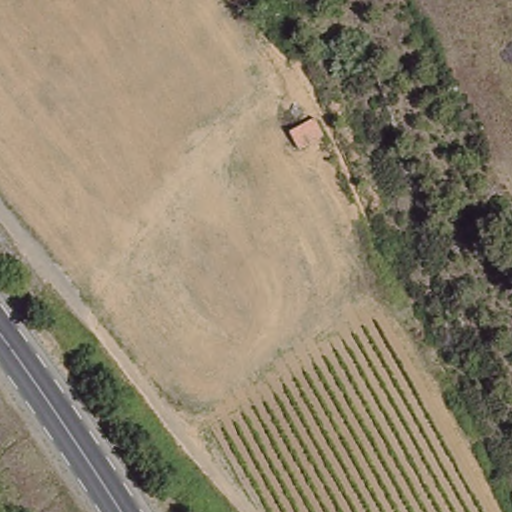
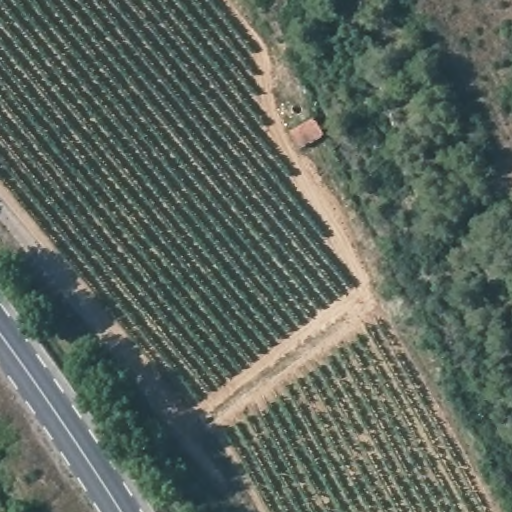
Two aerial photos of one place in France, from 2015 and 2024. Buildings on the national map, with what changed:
unchanged [(321,135),(300,147),(291,129),(314,117),(321,135)]

